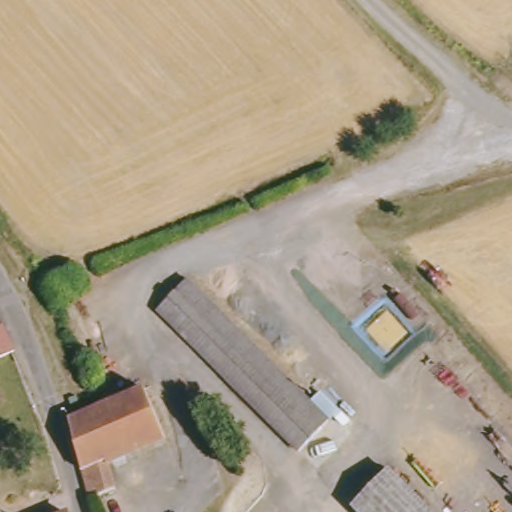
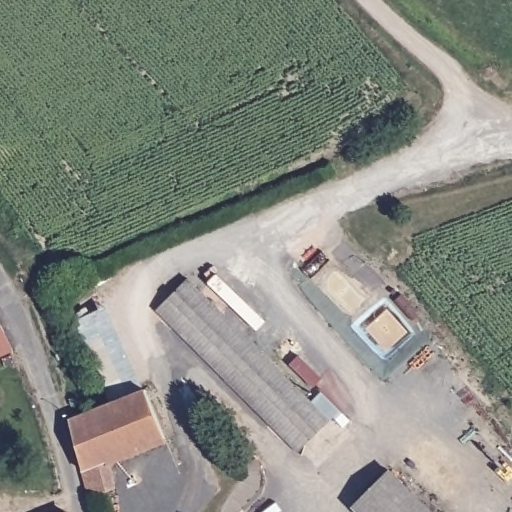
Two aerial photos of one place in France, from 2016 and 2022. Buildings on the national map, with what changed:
unchanged [(141,293),(175,259),(347,429),(312,464),(141,293)]
unchanged [(0,353),(0,334),(7,349),(0,353)]
unchanged [(142,378),(168,434),(111,460),(115,483),(100,489),(85,494),(67,411),(85,403),(142,378)]
unchanged [(386,461),(435,512),(351,512),(342,502),(386,461)]

